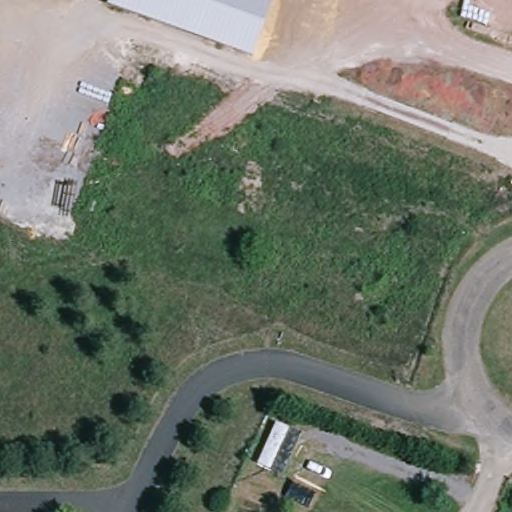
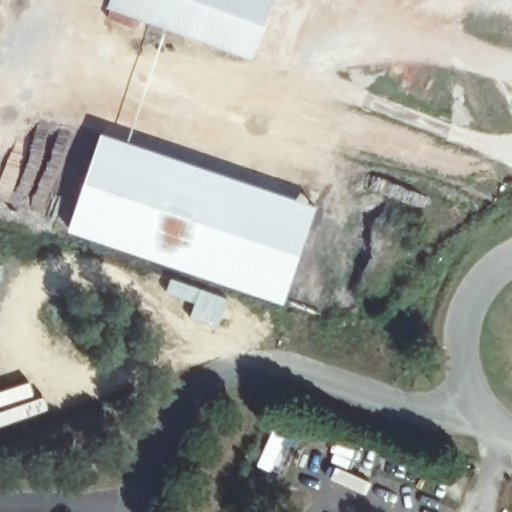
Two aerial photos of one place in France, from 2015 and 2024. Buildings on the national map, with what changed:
unchanged [(109,3),(110,0),(273,0),(260,35),(250,59),(109,3)]
new [(283,302),(68,230),(101,132),(315,205),(283,302)]

